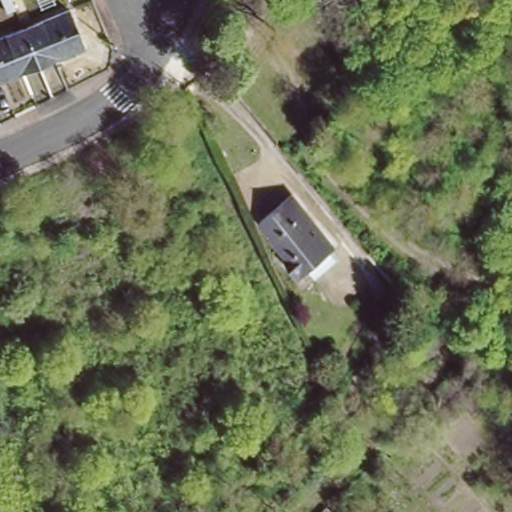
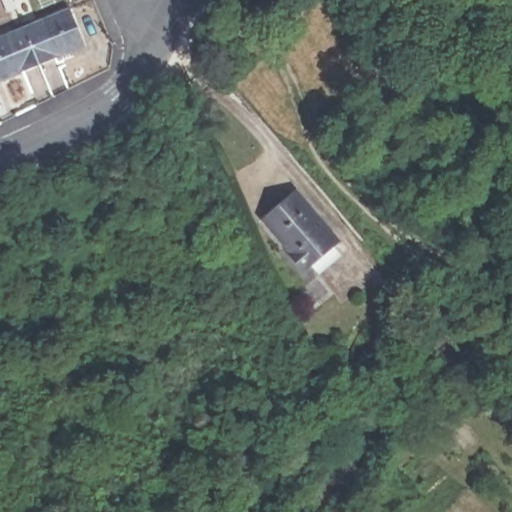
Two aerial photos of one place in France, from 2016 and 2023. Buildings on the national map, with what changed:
unchanged [(23,27),(66,9),(82,46),(38,64),(23,27)]
unchanged [(38,64),(0,80),(0,36),(23,27),(38,64)]
unchanged [(303,270),(302,267),(297,271),(284,256),(288,252),(257,216),(286,191),(333,244),(303,270)]
unchanged [(429,353),(416,338),(432,324),(446,339),(429,353)]

